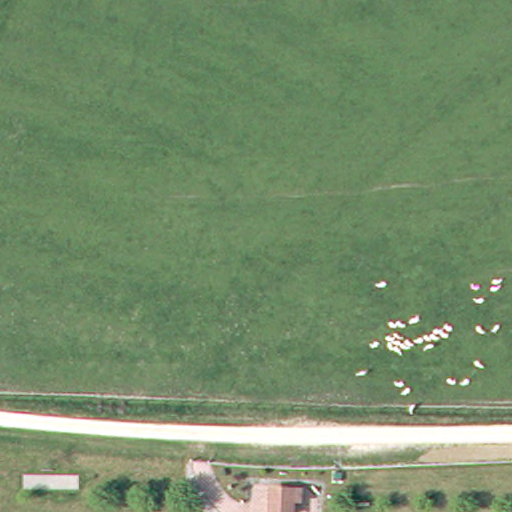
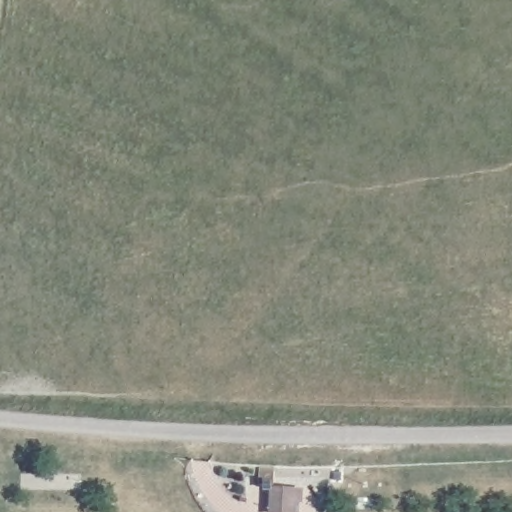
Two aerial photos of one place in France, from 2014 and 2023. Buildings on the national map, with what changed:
unchanged [(292,512),(271,512),(273,489),(300,490),(300,501),(292,500),(292,512)]

